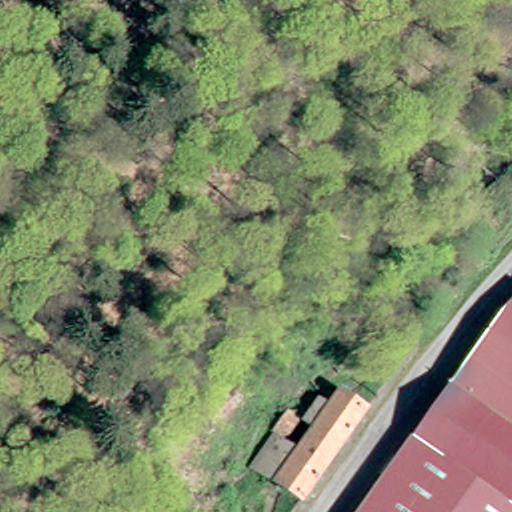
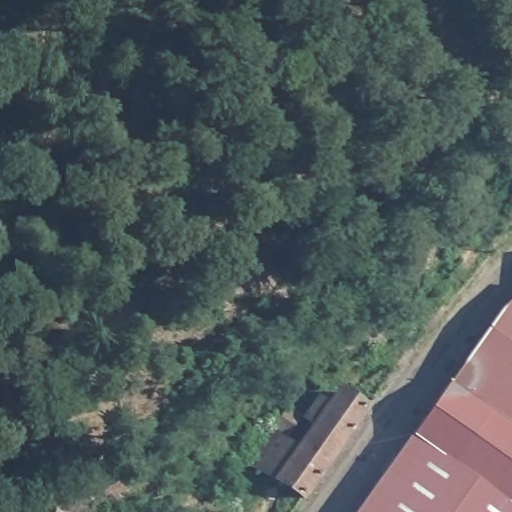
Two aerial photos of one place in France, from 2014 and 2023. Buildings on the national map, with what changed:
unchanged [(353,279),(347,283),(344,279),(350,274),(353,279)]
unchanged [(512,512),(358,512),(512,302),(512,512)]
unchanged [(317,399),(307,391),(324,368),(335,376),(317,399)]
unchanged [(273,442),(279,446),(298,460),(315,437),(304,429),(320,407),(332,415),(340,404),(362,421),(300,509),(257,475),(251,470),(273,442)]
unchanged [(300,426),(285,445),(274,437),(264,429),(267,424),(277,433),(290,418),(300,426)]

